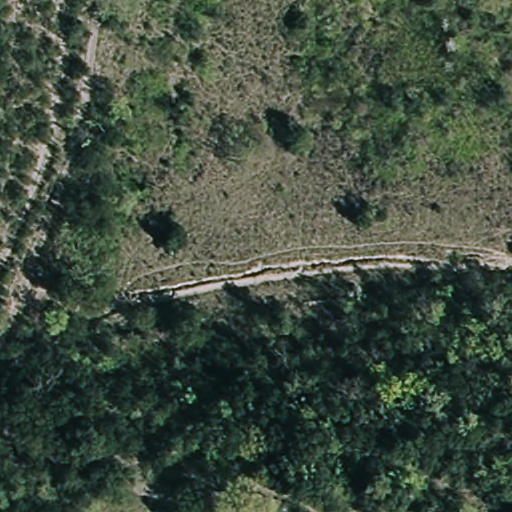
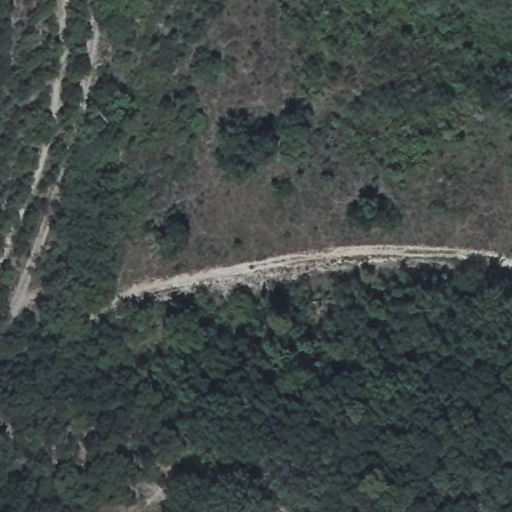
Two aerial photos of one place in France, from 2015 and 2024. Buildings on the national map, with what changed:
[]

